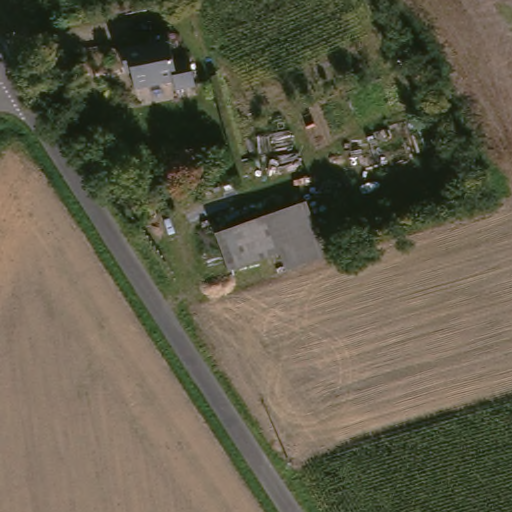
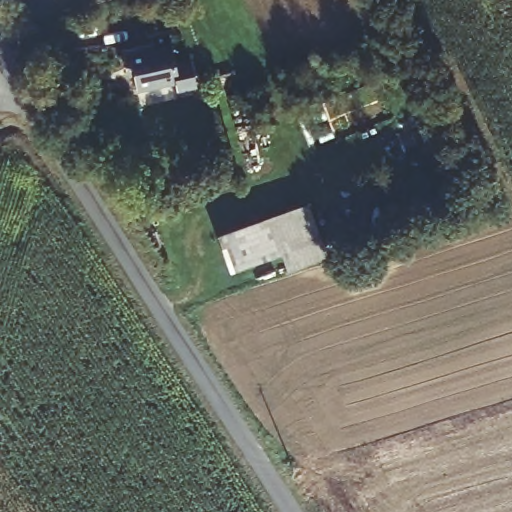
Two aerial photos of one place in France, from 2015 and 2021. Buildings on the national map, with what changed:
unchanged [(171,41),(179,87),(130,91),(125,46),(171,41)]
unchanged [(308,210),(325,259),(288,272),(283,256),(231,272),(220,239),(308,210)]

